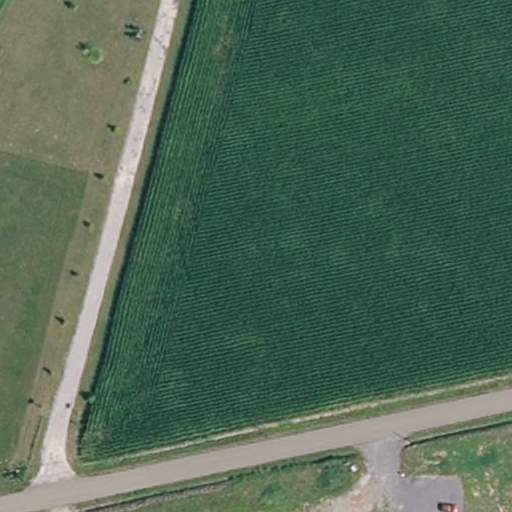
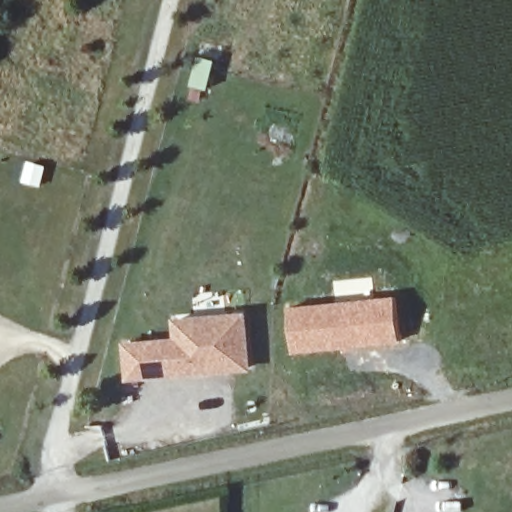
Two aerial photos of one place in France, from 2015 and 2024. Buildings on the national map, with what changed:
new [(333,280),(371,276),(373,295),(396,294),(401,343),(295,353),(289,305),(335,299),(333,280)]
new [(252,371),(127,382),(125,340),(176,336),(174,317),(247,310),(252,371)]

